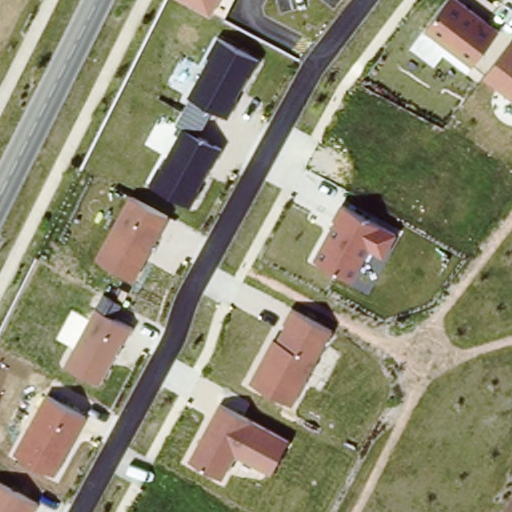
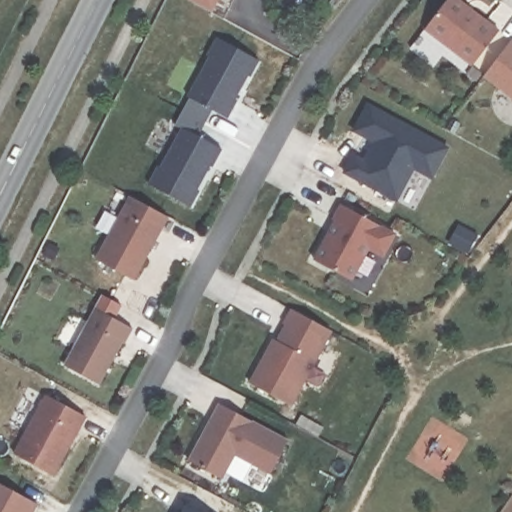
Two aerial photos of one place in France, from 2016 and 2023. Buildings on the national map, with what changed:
unchanged [(215,9),(212,16),(182,0),(234,0),(225,15),(215,9)]
unchanged [(447,0),(460,0),(499,29),(471,65),(424,34),(447,0)]
unchanged [(149,185),(160,164),(162,166),(182,127),(177,124),(218,38),(257,60),(250,75),(247,74),(228,116),(209,108),(197,134),(222,147),(190,205),(149,185)]
unchanged [(511,39),(512,40),(512,101),(481,78),(511,39)]
new [(355,149),(369,157),(374,143),(351,130),(367,102),(450,146),(432,179),(412,168),(397,202),(343,172),(355,149)]
unchanged [(129,198),(168,216),(134,280),(97,259),(129,198)]
unchanged [(341,206),(395,230),(385,257),(370,250),(354,281),(315,260),(341,206)]
unchanged [(249,381),(290,307),(330,331),(290,404),(249,381)]
unchanged [(93,309),(131,328),(99,381),(65,364),(93,309)]
unchanged [(44,394),(87,415),(54,473),(14,452),(44,394)]
unchanged [(217,402),(290,439),(265,476),(237,462),(225,482),(188,458),(217,402)]
unchanged [(31,512),(0,512),(0,486),(35,504),(31,512)]
new [(198,512),(183,512),(186,505),(198,512)]

